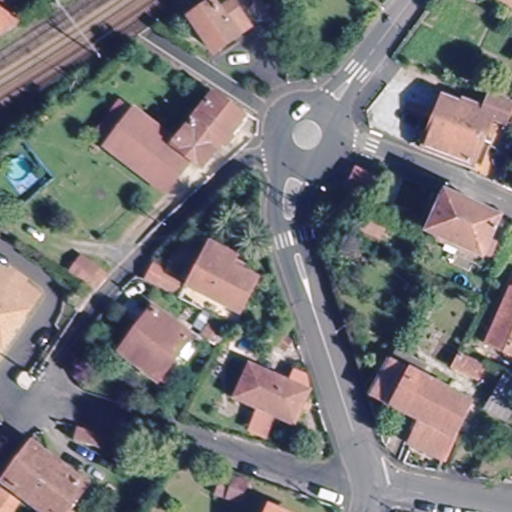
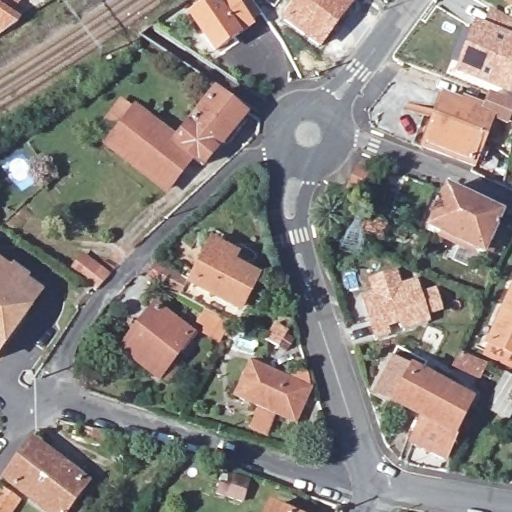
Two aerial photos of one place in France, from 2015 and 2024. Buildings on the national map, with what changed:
unchanged [(293,0),(295,1),(275,16),(267,6),(275,0),(293,0)]
new [(348,0),(355,5),(320,51),(281,21),(296,0),(348,0)]
unchanged [(512,0),(512,1),(511,0),(512,0)]
new [(488,89),(453,76),(475,22),(484,26),(490,10),(512,22),(512,91),(512,93),(489,86),(488,89)]
unchanged [(198,26),(217,12),(224,21),(236,12),(252,35),(216,61),(194,31),(187,35),(180,25),(191,16),(198,26)]
unchanged [(18,26),(0,38),(0,15),(18,26)]
unchanged [(439,94),(467,106),(469,101),(475,103),(474,105),(480,108),(489,86),(512,93),(512,98),(500,126),(487,120),(468,164),(418,142),(439,94)]
unchanged [(112,123),(153,157),(206,94),(233,115),(195,163),(184,154),(156,188),(98,140),(112,123)]
unchanged [(492,174),(498,136),(511,138),(504,179),(492,174)]
new [(347,188),(356,166),(376,175),(367,197),(347,188)]
unchanged [(484,259),(430,233),(447,196),(502,222),(484,259)]
unchanged [(215,237),(235,249),(230,256),(253,270),(228,312),(185,286),(215,237)]
unchanged [(75,272),(89,258),(104,273),(93,284),(75,272)]
new [(396,271),(401,284),(416,279),(421,292),(435,288),(443,311),(429,316),(430,321),(373,339),(358,284),(396,271)]
unchanged [(0,356),(0,277),(37,303),(0,356)]
unchanged [(512,295),(512,356),(488,343),(512,295)]
unchanged [(153,307),(191,336),(180,349),(177,346),(154,375),(120,349),(153,307)]
unchanged [(489,361),(480,386),(453,375),(462,351),(489,361)]
unchanged [(416,383),(449,400),(453,392),(468,400),(464,408),(466,409),(451,439),(454,441),(443,464),(407,447),(419,422),(380,403),(373,399),(393,357),(406,363),(422,370),(416,383)]
unchanged [(308,388),(291,423),(233,396),(248,362),(288,380),(292,372),(304,378),(308,388)]
unchanged [(497,397),(506,377),(512,380),(512,418),(492,409),(497,397)]
unchanged [(104,450),(76,442),(80,430),(108,437),(120,441),(117,453),(104,450)]
unchanged [(86,487),(68,512),(43,512),(5,485),(33,447),(86,487)]
unchanged [(220,488),(223,477),(248,485),(241,507),(229,503),(216,499),(220,488)]
unchanged [(21,501),(13,512),(0,512),(0,489),(2,486),(21,501)]

